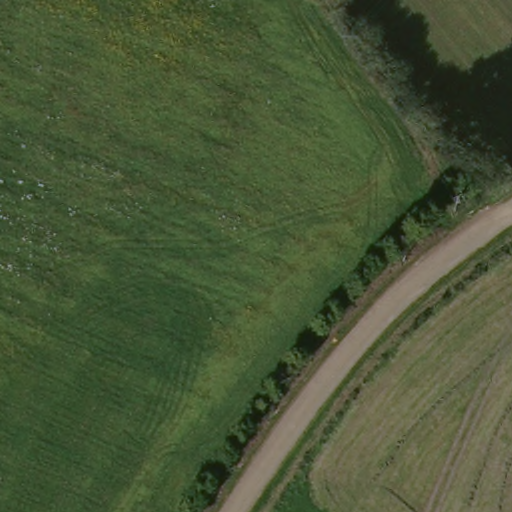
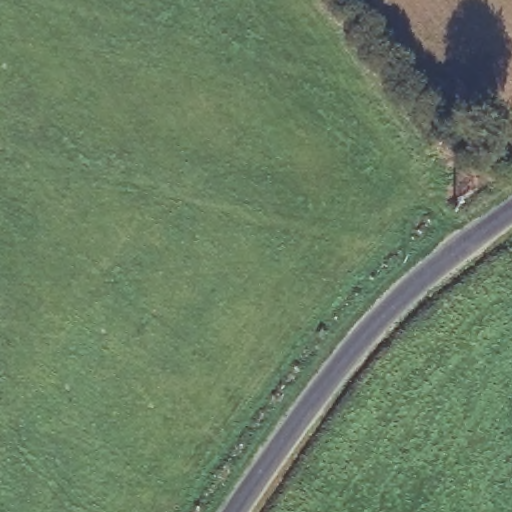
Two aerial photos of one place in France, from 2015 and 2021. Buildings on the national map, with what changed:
unchanged [(459,205),(466,200),(471,207),(465,212),(459,205)]

